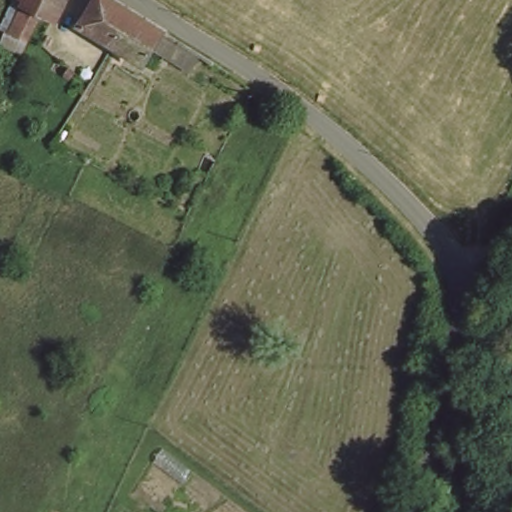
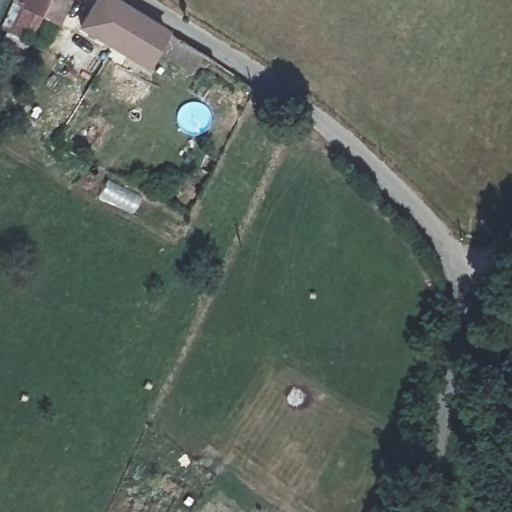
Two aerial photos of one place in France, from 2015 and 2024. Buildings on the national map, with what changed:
unchanged [(54,27),(25,5),(28,0),(75,0),(54,27)]
unchanged [(135,67),(96,39),(76,25),(93,0),(107,0),(157,35),(135,67)]
unchanged [(40,20),(30,39),(10,30),(20,9),(40,20)]

